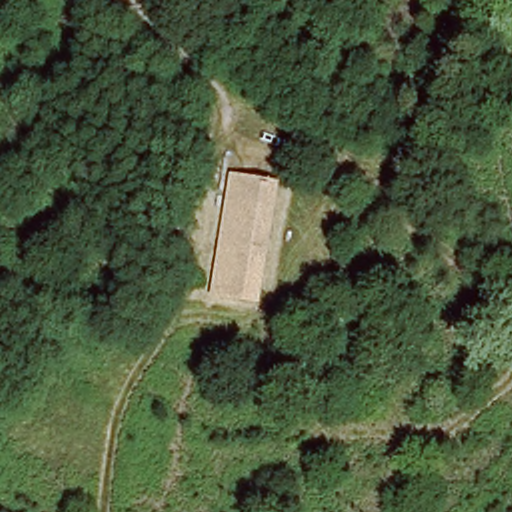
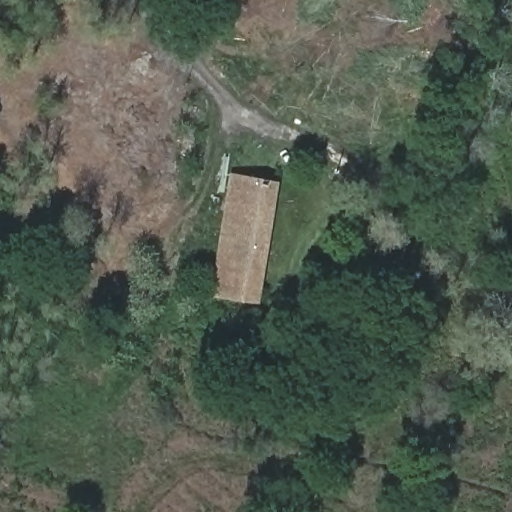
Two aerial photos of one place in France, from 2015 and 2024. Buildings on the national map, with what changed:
unchanged [(280,181),(258,300),(212,294),(230,172),(280,181)]

